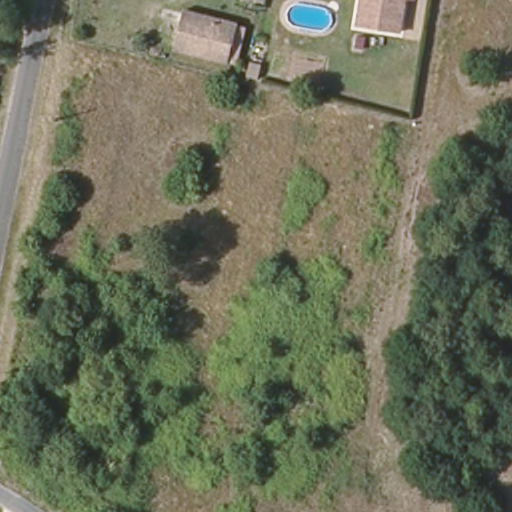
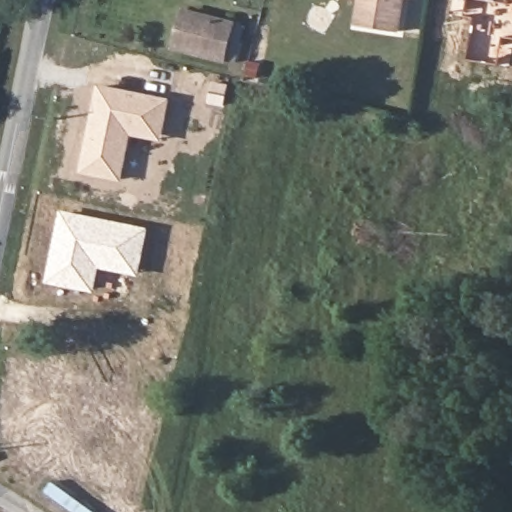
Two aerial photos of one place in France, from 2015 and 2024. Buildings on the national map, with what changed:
unchanged [(399,30),(357,24),(361,0),(404,0),(399,30)]
unchanged [(226,59),(176,46),(186,10),(236,22),(226,59)]
new [(123,181),(80,174),(99,85),(172,99),(163,141),(132,136),(123,181)]
new [(141,276),(102,268),(97,293),(47,283),(61,210),(150,228),(141,276)]

